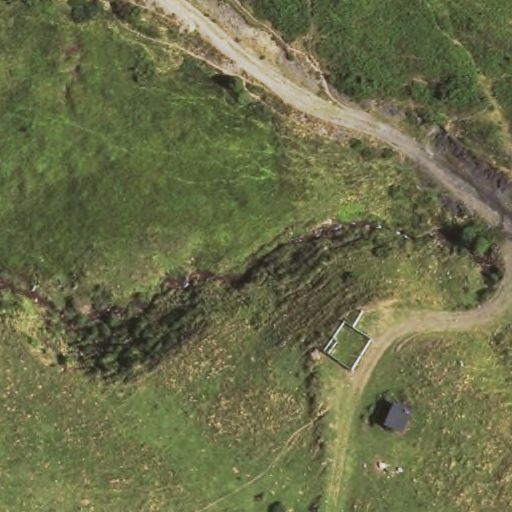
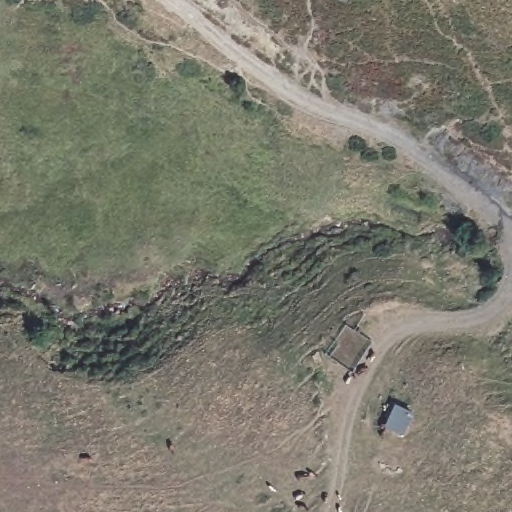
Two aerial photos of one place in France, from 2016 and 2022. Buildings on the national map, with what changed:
unchanged [(416,409),(405,430),(386,426),(393,414),(398,401),(416,409)]

